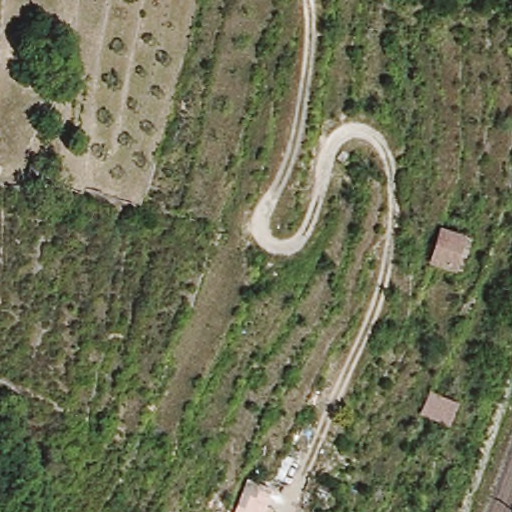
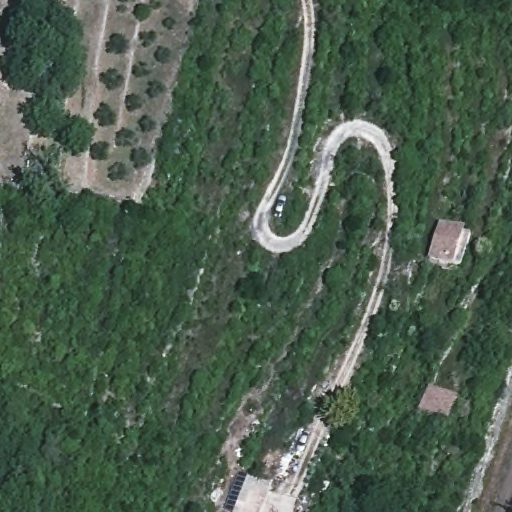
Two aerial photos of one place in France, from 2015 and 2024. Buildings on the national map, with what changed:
unchanged [(442,222),(476,232),(465,263),(431,252),(442,222)]
unchanged [(458,395),(453,422),(430,417),(434,390),(458,395)]
unchanged [(247,479),(266,488),(257,508),(264,512),(232,512),(247,479)]

